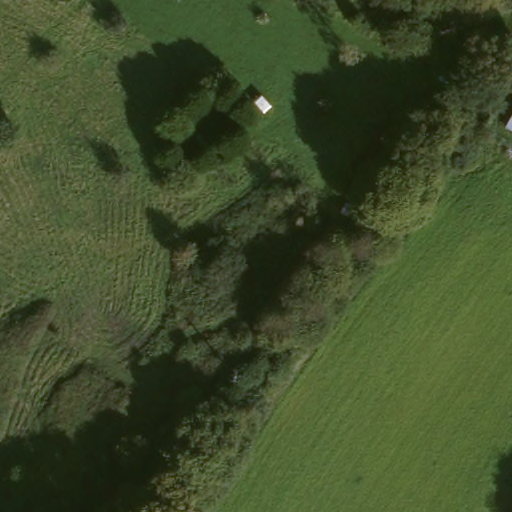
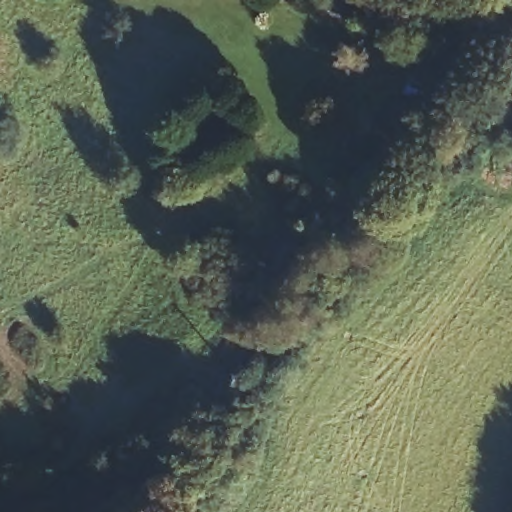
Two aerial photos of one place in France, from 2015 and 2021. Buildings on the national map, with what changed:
unchanged [(508,117),(512,112),(512,120),(508,117)]

